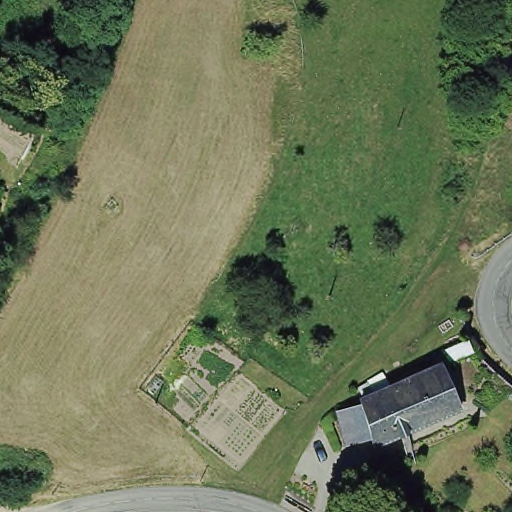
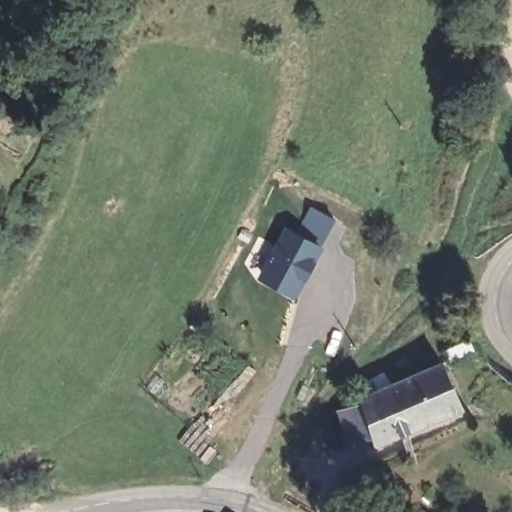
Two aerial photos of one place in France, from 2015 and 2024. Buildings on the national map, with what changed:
new [(283,227),(322,249),(293,301),(255,281),(283,227)]
unchanged [(455,359),(450,347),(470,337),(473,350),(455,359)]
unchanged [(444,360),(466,408),(421,430),(407,397),(428,388),(420,371),(444,360)]
unchanged [(364,403),(361,398),(368,395),(365,383),(385,368),(400,380),(420,371),(428,388),(407,397),(421,430),(385,447),(380,437),(357,448),(342,412),(364,403)]

